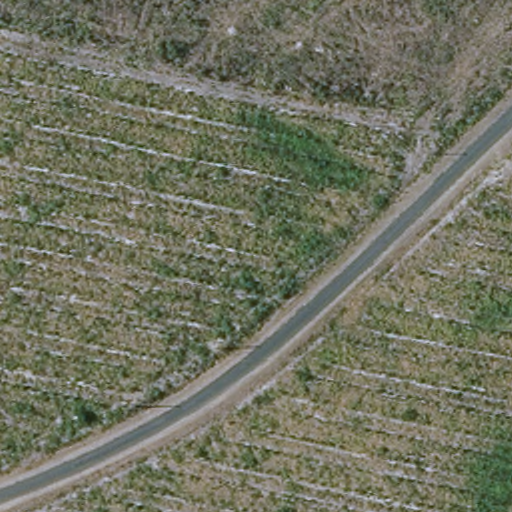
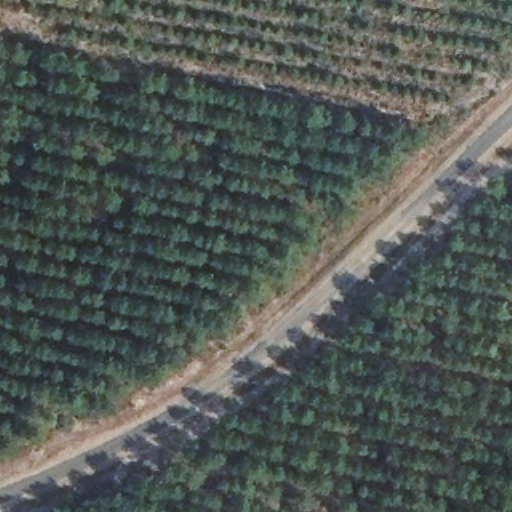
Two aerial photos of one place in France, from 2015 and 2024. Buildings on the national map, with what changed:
[]

